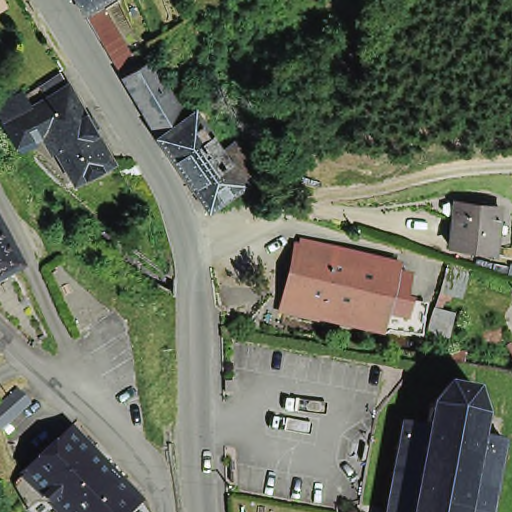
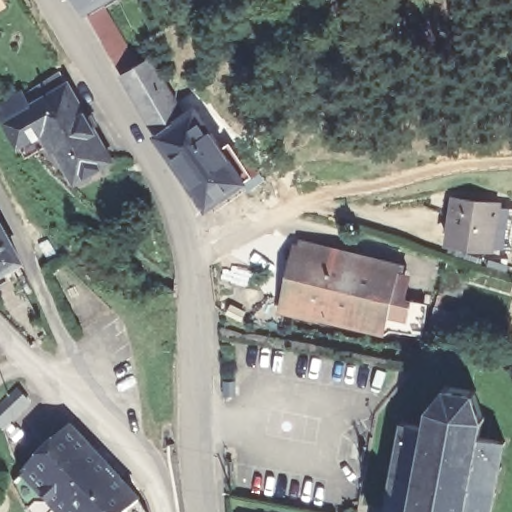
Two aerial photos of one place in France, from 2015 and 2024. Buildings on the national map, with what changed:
unchanged [(71,0),(113,0),(81,17),(71,0)]
unchanged [(0,7),(0,3),(2,6),(0,7)]
unchanged [(185,126),(176,132),(160,145),(122,85),(113,69),(85,22),(103,10),(131,59),(140,74),(149,68),(185,126)]
unchanged [(27,141),(31,148),(20,154),(15,156),(0,129),(0,107),(20,96),(55,76),(62,88),(107,165),(69,187),(40,133),(27,141)]
unchanged [(265,187),(243,202),(240,199),(235,192),(205,213),(156,148),(160,145),(176,132),(185,126),(193,120),(205,136),(210,133),(216,129),(242,146),(247,149),(272,165),(257,176),(262,183),(265,187)]
unchanged [(452,200),(497,205),(491,250),(447,246),(452,200)]
unchanged [(264,309),(282,248),(285,240),(380,265),(381,273),(384,304),(389,306),(382,332),(264,309)]
unchanged [(10,278),(0,283),(0,243),(15,275),(10,278)]
unchanged [(389,306),(412,313),(415,310),(439,315),(434,338),(407,335),(382,332),(389,306)]
unchanged [(377,509),(380,499),(386,500),(387,494),(384,494),(385,488),(388,488),(391,470),(388,469),(390,463),(393,463),(396,444),(393,444),(395,437),(398,437),(401,421),(398,420),(398,415),(402,416),(402,412),(408,413),(407,417),(425,420),(429,404),(427,403),(428,398),(431,398),(444,384),(441,380),(447,377),(449,380),(470,384),(474,381),(477,385),(475,388),(480,407),(483,407),(484,414),(480,414),(478,430),(500,434),(501,430),(503,431),(503,435),(507,435),(506,441),(502,441),(498,458),(501,459),(500,466),(497,466),(493,485),(498,485),(497,491),(493,490),(490,509),(493,510),(493,512),(384,512),(384,510),(377,509)]
unchanged [(18,480),(17,478),(67,431),(136,508),(139,512),(50,512),(32,494),(18,480)]
unchanged [(50,512),(23,512),(10,488),(18,480),(32,494),(50,512)]

